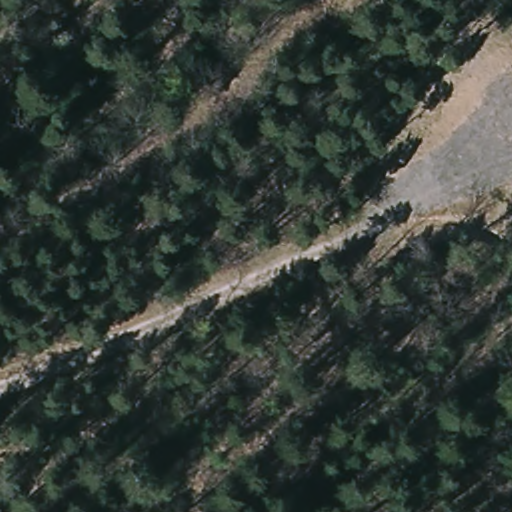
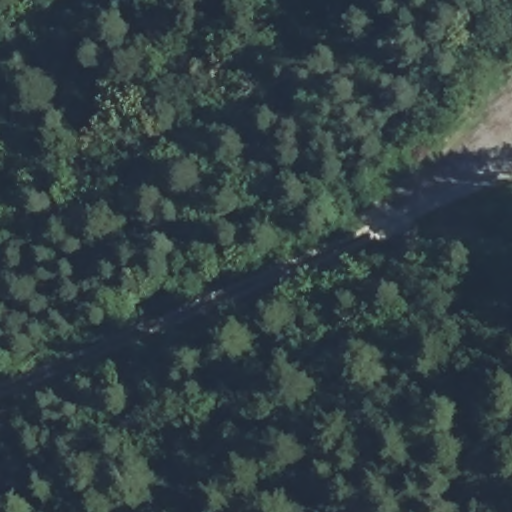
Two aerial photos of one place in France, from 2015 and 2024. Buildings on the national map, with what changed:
[]

